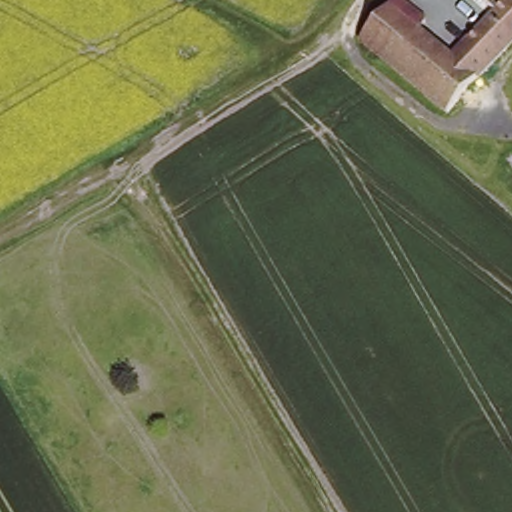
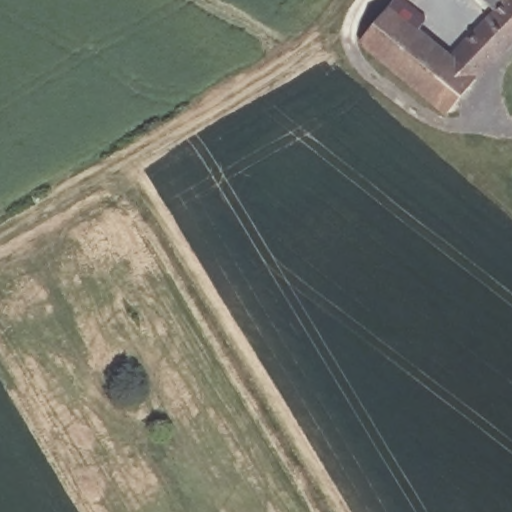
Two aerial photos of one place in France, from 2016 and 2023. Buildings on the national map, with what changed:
unchanged [(368,42),(401,0),(415,0),(435,16),(427,28),(459,56),(508,1),(507,0),(512,0),(512,54),(457,114),(368,42)]

